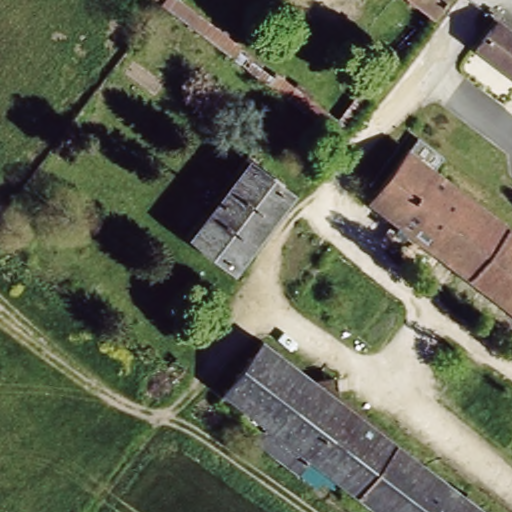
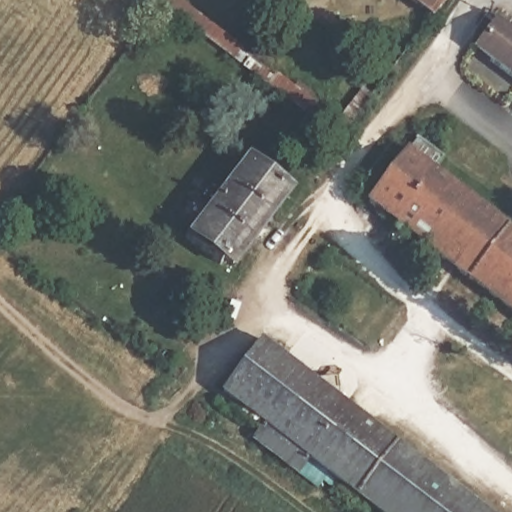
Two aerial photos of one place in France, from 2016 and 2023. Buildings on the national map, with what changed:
unchanged [(339,138),(155,0),(178,0),(339,119),(364,85),(374,93),(339,138)]
unchanged [(431,15),(411,0),(442,0),(431,15)]
unchanged [(503,20),(512,27),(512,76),(479,51),(503,20)]
unchanged [(236,272),(225,264),(201,246),(176,227),(198,199),(206,205),(225,181),(223,180),(216,175),(234,150),(294,195),(276,220),(236,272)]
unchanged [(512,311),(369,202),(407,151),(512,231),(512,311)]
unchanged [(266,341),(309,375),(269,427),(257,418),(225,394),(266,341)]
unchanged [(488,512),(379,512),(312,461),(300,477),(256,443),(269,427),(309,375),(488,512)]

